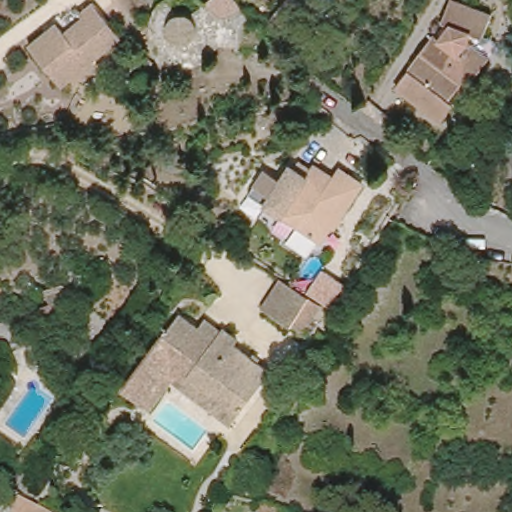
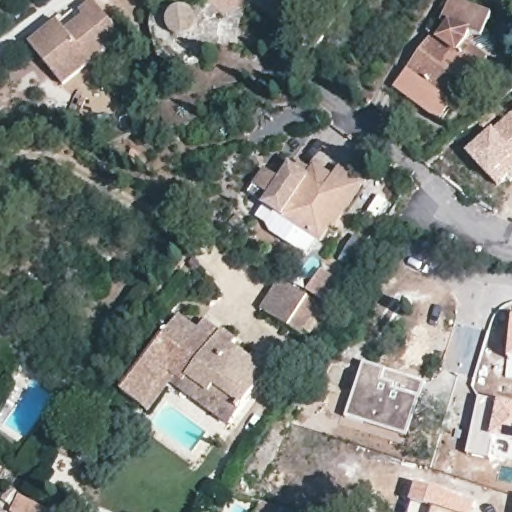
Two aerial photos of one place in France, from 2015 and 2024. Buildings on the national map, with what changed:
unchanged [(236,42),(217,39),(201,57),(178,62),(155,55),(146,25),(146,22),(146,19),(146,16),(146,13),(148,11),(148,8),(150,6),(151,4),(152,2),(153,0),(206,0),(219,12),(240,3),(243,14),(241,27),(236,42)]
unchanged [(449,95),(409,64),(435,30),(441,35),(451,21),(442,17),(448,0),(469,0),(493,9),(483,34),(470,29),(467,37),(489,54),(470,80),(463,89),(457,84),(449,95)]
unchanged [(35,50),(63,26),(72,36),(89,22),(85,17),(100,6),(128,42),(68,91),(35,50)]
unchanged [(409,64),(449,95),(455,100),(441,117),(395,82),(409,64)]
new [(492,129),(512,111),(512,172),(496,187),(465,154),(492,129)]
unchanged [(371,187),(325,242),(293,215),(288,220),(268,204),(273,196),(256,185),(268,166),(280,177),(291,160),(309,172),(319,160),(335,173),(343,165),(371,187)]
new [(321,270),(343,285),(329,307),(307,292),(321,270)]
unchanged [(326,306),(305,337),(264,307),(282,277),(326,306)]
unchanged [(182,382),(175,378),(153,407),(125,386),(181,311),(200,325),(208,315),(222,328),(225,325),(243,340),(238,345),(273,368),(235,422),(182,382)]
new [(512,323),(512,360),(507,360),(512,323)]
new [(363,361),(426,382),(407,438),(344,417),(363,361)]
new [(479,397),(512,404),(512,443),(496,438),(490,461),(466,455),(479,397)]
new [(417,482),(477,502),(476,504),(474,512),(440,512),(434,511),(410,503),(417,482)]
unchanged [(10,506),(2,498),(4,496),(12,486),(20,492),(10,506)]
unchanged [(291,512),(256,512),(261,502),(291,512)]
new [(434,511),(440,512),(433,512),(434,511)]

